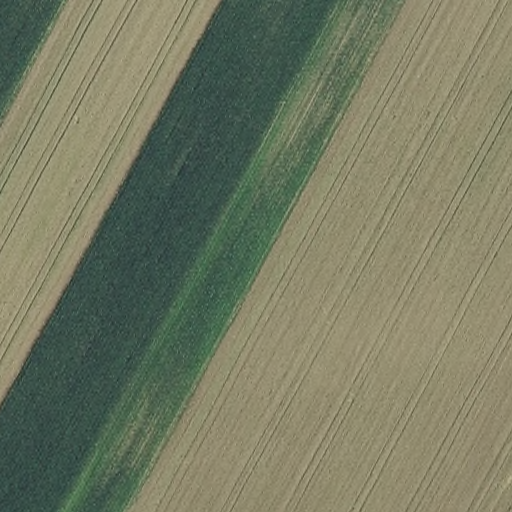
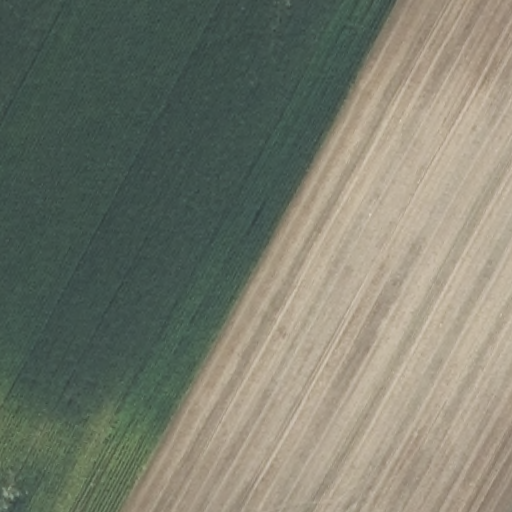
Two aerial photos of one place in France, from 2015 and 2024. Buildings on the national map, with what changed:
[]

